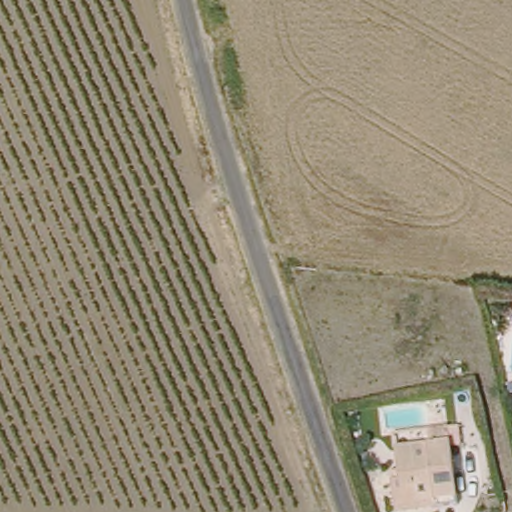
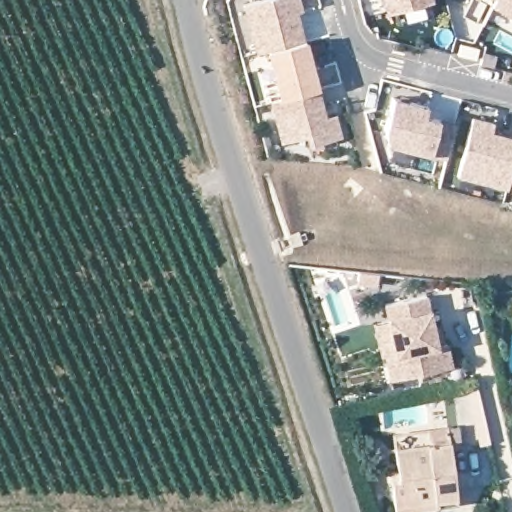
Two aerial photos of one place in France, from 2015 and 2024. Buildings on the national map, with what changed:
new [(256,52),(243,5),(262,0),(301,0),(304,11),(298,13),(306,40),(256,52)]
new [(391,9),(389,0),(425,0),(391,9)]
new [(493,7),(496,0),(512,0),(512,18),(493,7)]
new [(306,40),(319,88),(279,98),(266,50),(306,40)]
new [(460,43),(479,48),(476,58),(458,53),(460,43)]
new [(321,87),(329,117),(338,114),(343,134),(313,142),(311,132),(286,139),(275,99),(321,87)]
new [(394,96),(429,105),(426,115),(456,122),(447,157),(416,149),(417,144),(388,137),(386,128),(394,96)]
new [(495,122),(493,131),(512,136),(512,171),(508,187),(491,183),(493,175),(479,172),(477,179),(458,174),(473,116),(495,122)]
new [(378,282),(358,280),(359,271),(379,273),(378,282)]
new [(390,298),(430,291),(436,324),(444,322),(447,339),(449,339),(454,362),(393,374),(389,350),(384,351),(378,318),(393,316),(390,298)]
unchanged [(387,473),(394,472),(390,441),(446,434),(454,496),(426,499),(391,504),(390,494),(387,473)]

